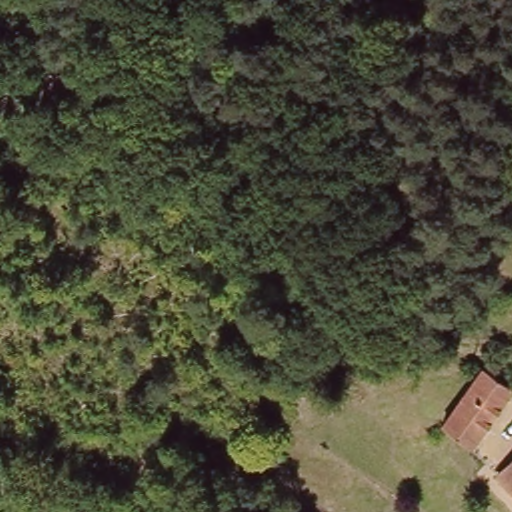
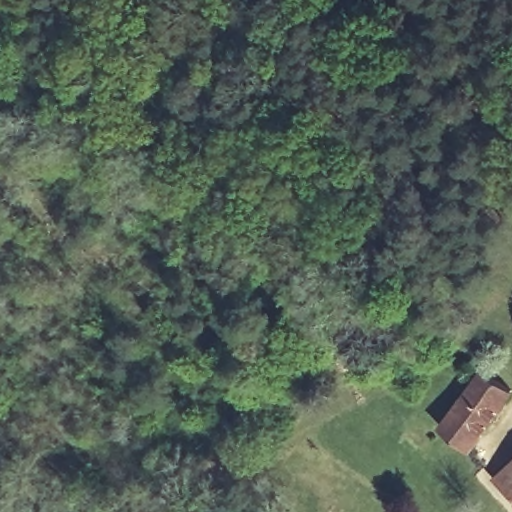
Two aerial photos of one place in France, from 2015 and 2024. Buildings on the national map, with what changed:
unchanged [(512,381),(512,395),(478,446),(451,425),(490,369),(512,381)]
unchanged [(498,476),(512,465),(512,491),(498,476)]

